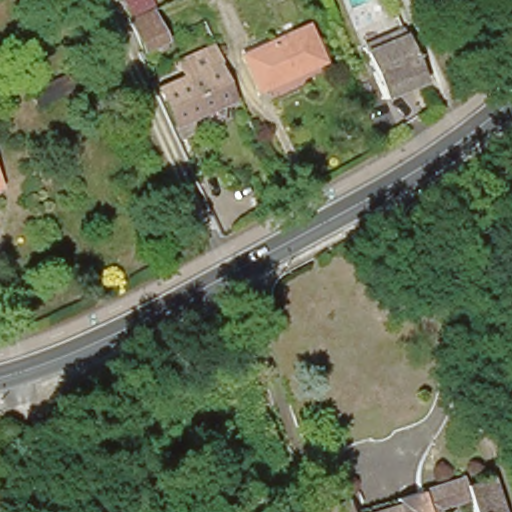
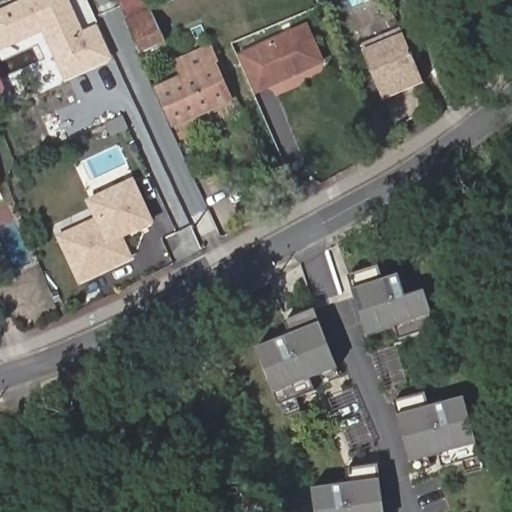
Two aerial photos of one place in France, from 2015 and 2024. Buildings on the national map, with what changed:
new [(23,0),(68,0),(83,30),(97,25),(112,61),(66,81),(41,33),(0,52),(0,10),(23,0)]
unchanged [(140,54),(136,45),(122,16),(144,6),(157,35),(161,44),(140,54)]
unchanged [(323,64),(272,86),(256,49),(307,27),(323,64)]
unchanged [(420,75),(380,90),(364,50),(405,34),(420,75)]
unchanged [(159,89),(187,76),(180,60),(199,52),(206,67),(215,64),(231,101),(214,109),(175,127),(159,89)]
demolished [(65,76),(72,91),(36,107),(29,93),(65,76)]
new [(8,96),(0,101),(0,78),(8,96)]
new [(124,239),(134,259),(80,285),(56,237),(94,219),(85,200),(134,177),(156,224),(124,239)]
new [(433,315),(437,326),(401,337),(397,326),(368,335),(355,290),(349,277),(379,267),(382,276),(401,270),(411,296),(426,291),(433,315)]
new [(314,312),(320,323),(338,368),(342,375),(325,384),(322,375),(311,380),(315,390),(297,397),(301,406),(285,413),(281,403),(276,392),(258,347),(292,334),(287,322),(314,312)]
new [(477,445),(480,458),(443,466),(441,455),(429,458),(432,466),(416,472),(412,462),(400,415),(396,403),(426,395),(428,407),(465,398),(477,445)]
new [(350,483),(348,470),(378,466),(381,479),(385,512),(317,512),(313,488),(350,483)]
demolished [(497,512),(466,512),(463,502),(458,488),(487,479),(497,512)]
demolished [(435,511),(435,512),(398,512),(395,503),(393,499),(456,480),(458,488),(463,502),(435,511)]
demolished [(341,505),(343,512),(318,512),(341,505)]

